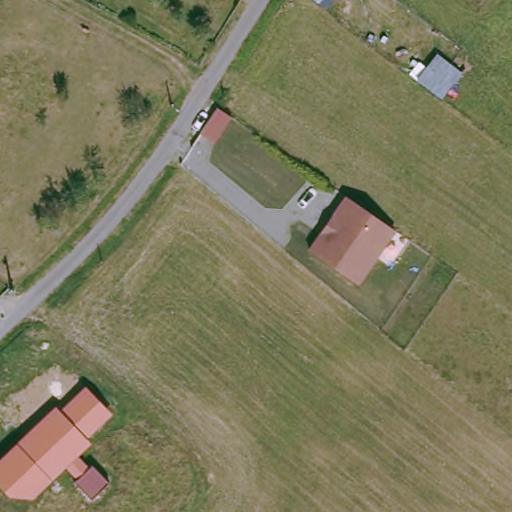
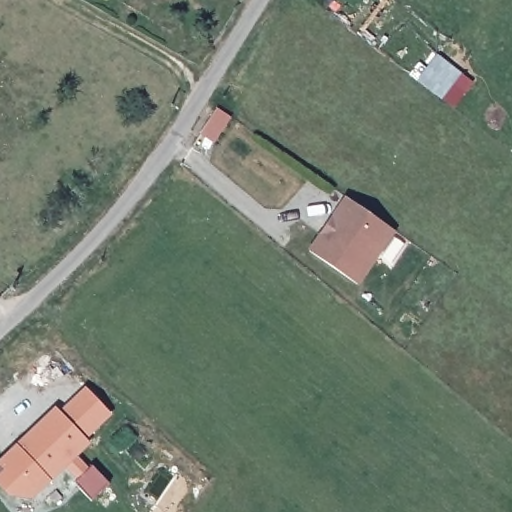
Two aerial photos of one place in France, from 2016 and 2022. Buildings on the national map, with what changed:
unchanged [(395,226),(357,280),(310,246),(322,229),(334,212),(347,193),(395,226)]
unchanged [(87,438),(91,443),(77,456),(89,468),(92,466),(108,482),(91,499),(74,481),(76,480),(65,467),(52,480),(34,498),(9,498),(3,491),(0,488),(0,459),(16,444),(55,407),(58,410),(84,387),(112,413),(87,438)]

